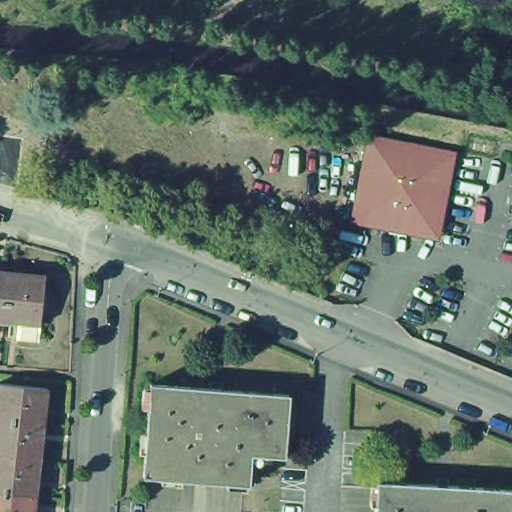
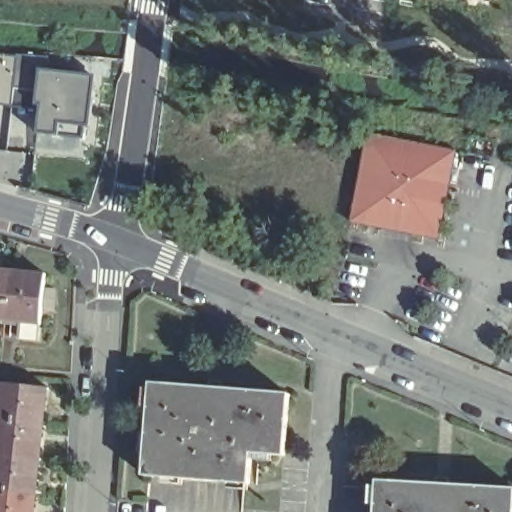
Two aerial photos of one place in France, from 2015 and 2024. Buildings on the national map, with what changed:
new [(14,89),(11,108),(0,106),(0,53),(17,55),(14,89)]
new [(89,126),(84,126),(82,138),(58,136),(34,133),(39,91),(14,89),(17,55),(49,58),(46,70),(96,76),(89,126)]
unchanged [(441,240),(346,224),(358,137),(451,153),(441,240)]
unchanged [(0,300),(0,273),(3,273),(0,300)]
unchanged [(37,277),(37,274),(41,274),(35,325),(32,325),(32,321),(14,319),(13,324),(11,323),(11,320),(0,319),(0,300),(3,273),(37,277)]
unchanged [(43,391),(41,391),(37,424),(0,420),(0,384),(44,388),(43,391)]
unchanged [(282,393),(279,456),(244,453),(242,484),(137,477),(142,384),(282,393)]
unchanged [(33,458),(36,458),(36,459),(0,456),(0,420),(37,424),(33,458)]
unchanged [(33,461),(29,495),(0,492),(0,456),(36,459),(33,461)]
unchanged [(507,512),(367,512),(370,480),(509,489),(507,512)]
unchanged [(0,512),(0,492),(29,495),(27,512),(0,512)]

